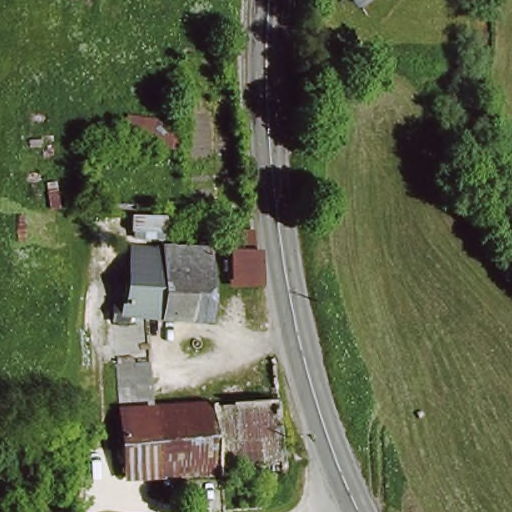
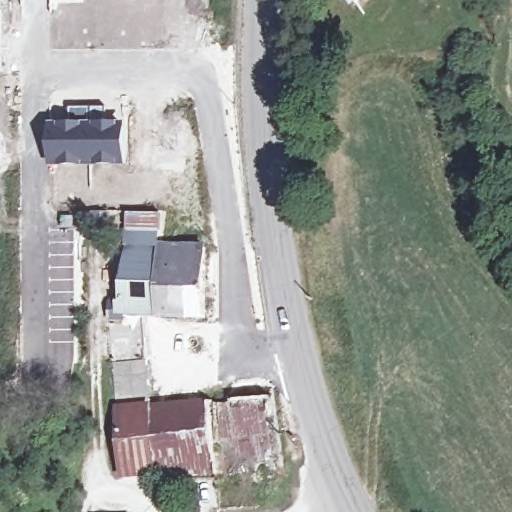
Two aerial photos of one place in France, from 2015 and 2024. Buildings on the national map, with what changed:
new [(68,121),(68,106),(106,108),(106,114),(95,114),(95,120),(126,123),(127,166),(48,166),(48,121),(68,121)]
unchanged [(230,287),(227,255),(206,253),(206,231),(255,233),(260,286),(230,287)]
unchanged [(163,319),(144,318),(147,364),(114,366),(111,322),(113,307),(122,307),(125,244),(164,252),(163,319)]
unchanged [(208,323),(200,322),(163,319),(164,252),(206,253),(208,323)]
unchanged [(150,410),(154,477),(123,481),(114,366),(147,364),(150,410)]
unchanged [(269,402),(274,469),(216,473),(209,407),(269,402)]
unchanged [(154,477),(150,410),(188,408),(209,407),(216,473),(154,477)]

